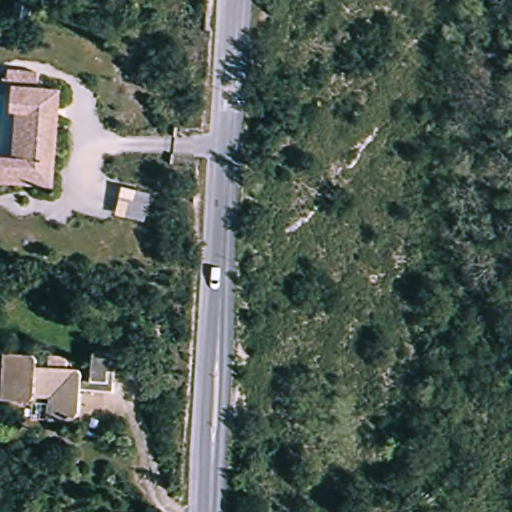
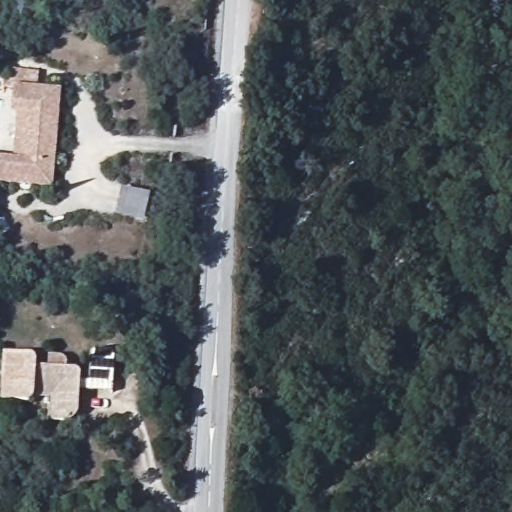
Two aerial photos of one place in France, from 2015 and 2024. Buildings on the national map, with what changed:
unchanged [(50,187),(0,186),(0,156),(11,156),(14,85),(59,87),(50,187)]
unchanged [(143,220),(114,213),(119,187),(148,193),(143,220)]
unchanged [(33,391),(29,402),(0,399),(4,350),(34,354),(34,363),(43,364),(43,355),(66,358),(64,367),(78,370),(75,424),(45,420),(46,393),(33,391)]
unchanged [(111,389),(89,387),(91,355),(99,352),(105,353),(110,355),(113,360),(113,361),(111,389)]

